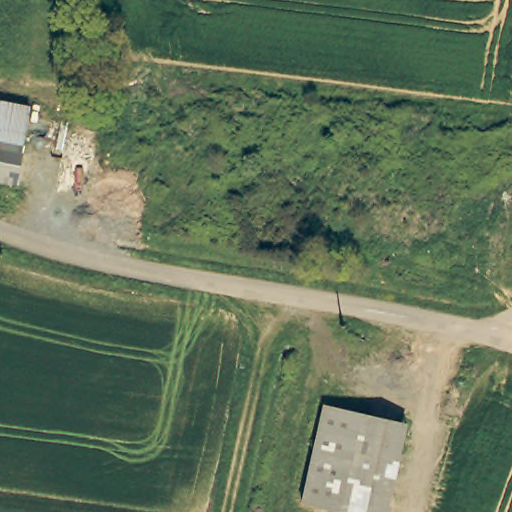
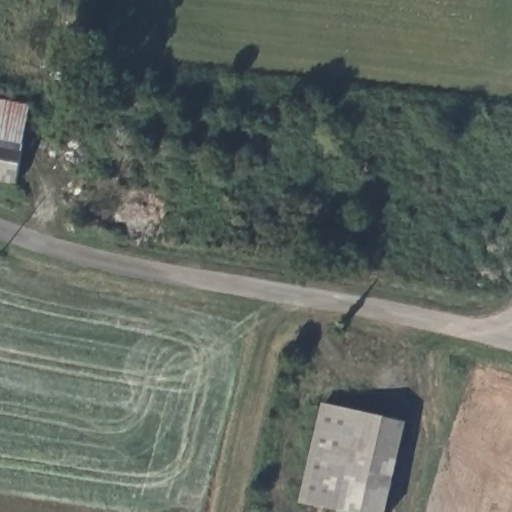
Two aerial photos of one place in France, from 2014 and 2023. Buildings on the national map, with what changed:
unchanged [(24,150),(0,145),(0,105),(33,112),(24,150)]
unchanged [(0,183),(0,145),(24,150),(17,187),(0,183)]
unchanged [(305,503),(328,405),(368,415),(344,512),(305,503)]
unchanged [(390,512),(344,512),(368,415),(411,425),(390,512)]

